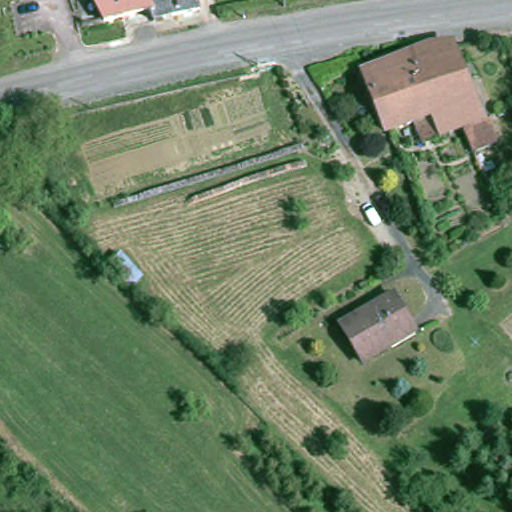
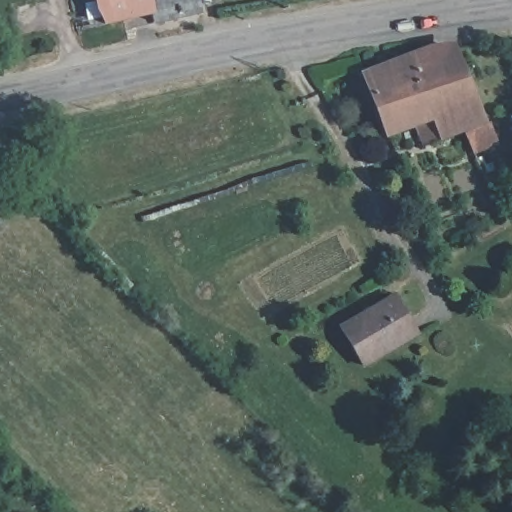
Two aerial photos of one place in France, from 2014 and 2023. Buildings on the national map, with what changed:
unchanged [(153,27),(152,20),(104,29),(97,0),(197,0),(201,18),(153,27)]
unchanged [(477,158),(468,136),(427,152),(419,131),(392,141),(367,81),(391,72),(434,54),(436,57),(459,54),(489,128),(499,149),(477,158)]
unchanged [(121,257),(143,280),(133,292),(110,269),(121,257)]
unchanged [(396,298),(417,334),(363,364),(342,329),(396,298)]

